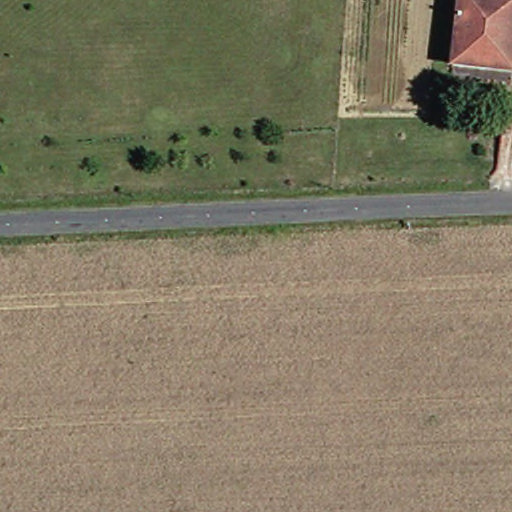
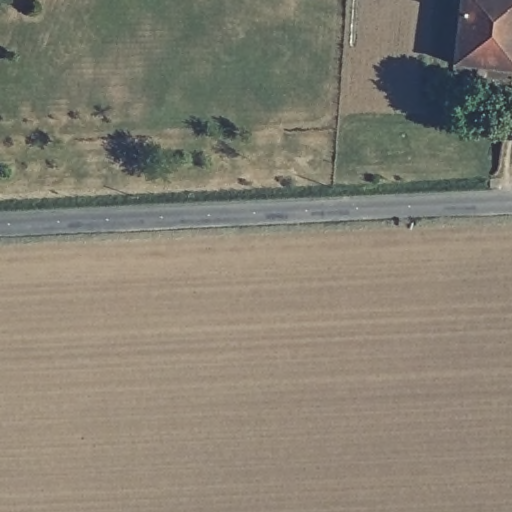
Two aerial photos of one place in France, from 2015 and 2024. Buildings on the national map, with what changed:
unchanged [(472,0),(512,0),(512,68),(464,65),(472,0)]

